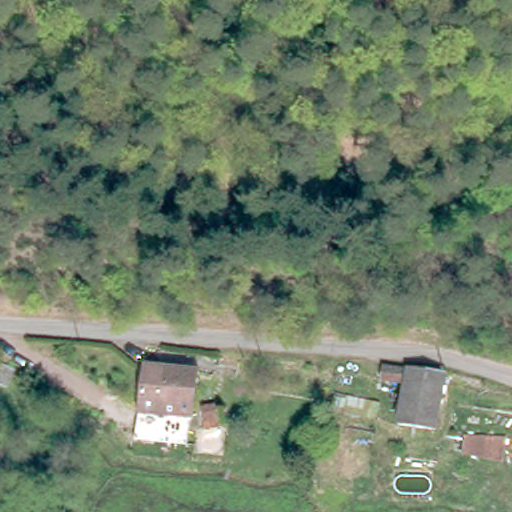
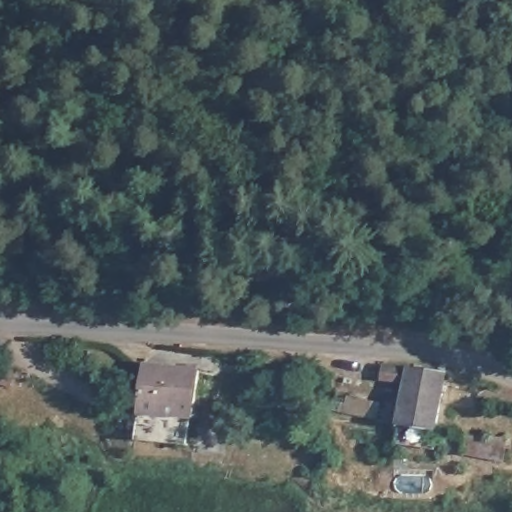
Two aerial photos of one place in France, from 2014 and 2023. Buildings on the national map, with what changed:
unchanged [(197,415),(145,409),(150,363),(202,369),(197,415)]
unchanged [(393,421),(406,366),(450,373),(437,430),(393,421)]
unchanged [(4,406),(0,404),(0,385),(10,388),(4,406)]
unchanged [(223,412),(220,432),(207,431),(210,410),(223,412)]

